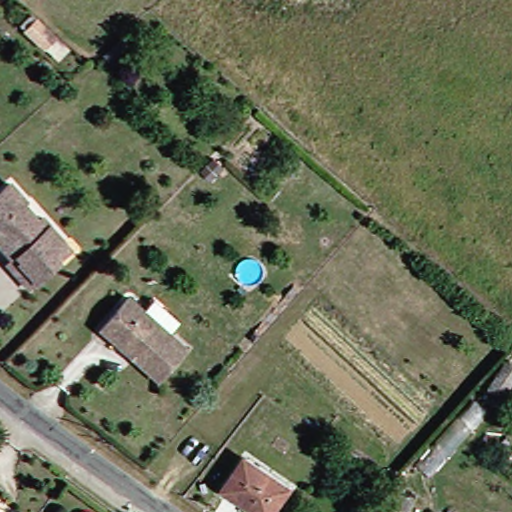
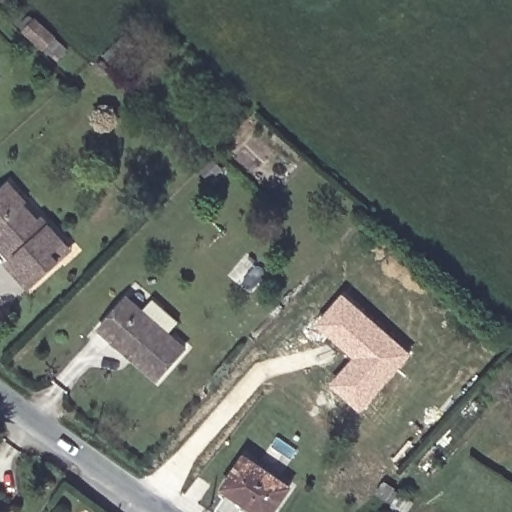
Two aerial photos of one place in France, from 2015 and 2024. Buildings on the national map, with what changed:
unchanged [(19,248),(0,230),(0,192),(12,182),(66,237),(75,246),(61,260),(47,272),(38,281),(12,255),(19,248)]
new [(362,412),(330,384),(354,357),(317,323),(345,292),(413,354),(362,412)]
unchanged [(192,346),(167,381),(108,336),(132,302),(192,346)]
unchanged [(293,486),(275,512),(263,512),(230,489),(251,457),(293,486)]
new [(415,502),(409,512),(404,512),(376,495),(383,483),(415,502)]
unchanged [(0,510),(3,512),(0,512),(0,510)]

